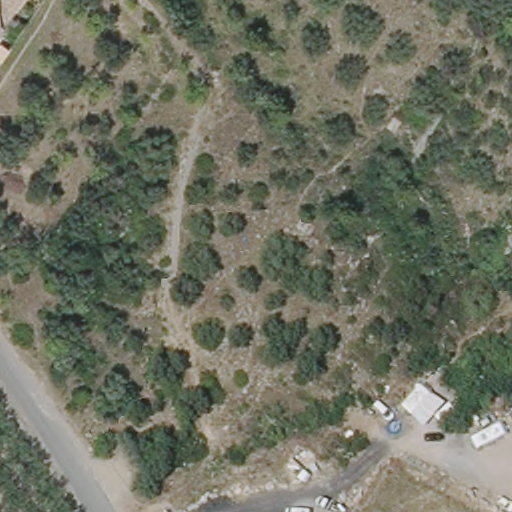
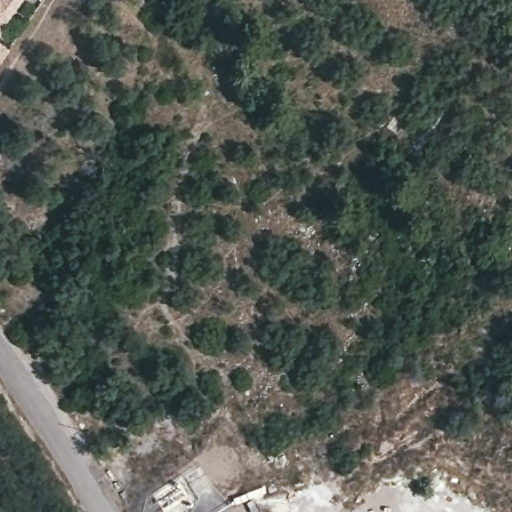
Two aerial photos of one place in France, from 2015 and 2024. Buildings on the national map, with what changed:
unchanged [(0,0),(16,0),(8,13),(0,13),(0,0)]

